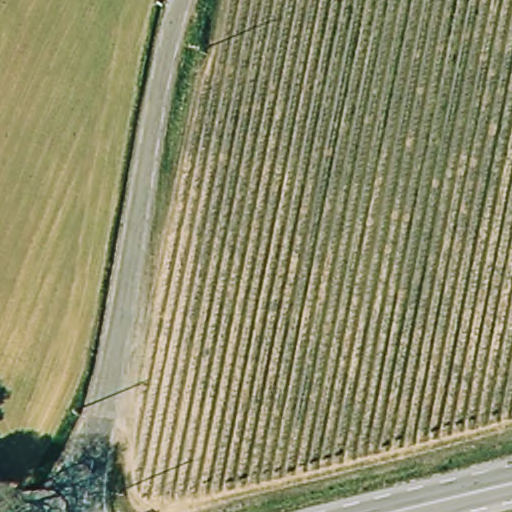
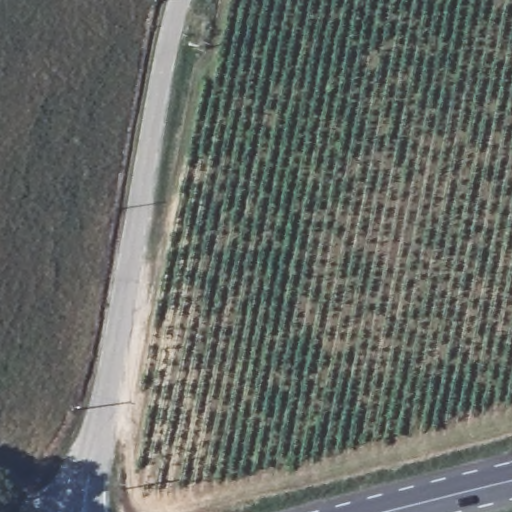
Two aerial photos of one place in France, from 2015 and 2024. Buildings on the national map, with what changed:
[]

